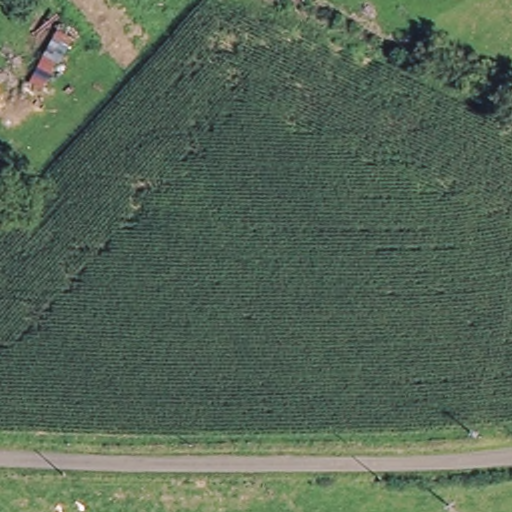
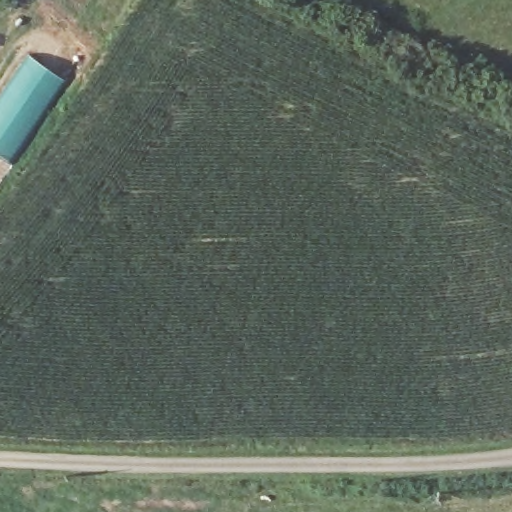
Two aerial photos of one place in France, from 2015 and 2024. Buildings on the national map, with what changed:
new [(30,53),(69,81),(0,180),(0,96),(30,53)]

